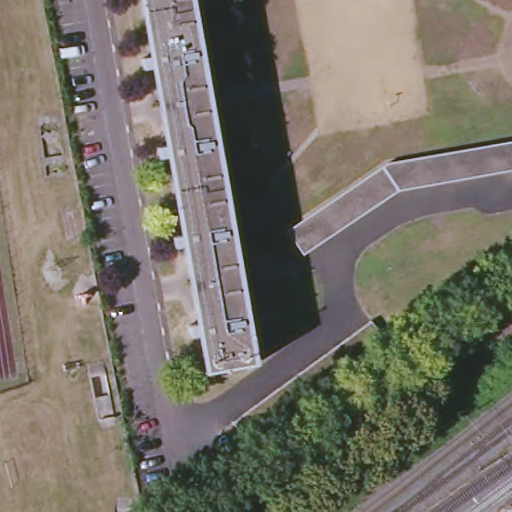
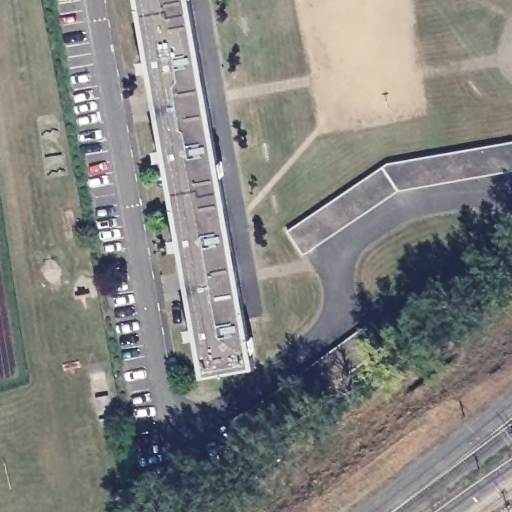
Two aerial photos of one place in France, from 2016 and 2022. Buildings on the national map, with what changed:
unchanged [(193,331),(191,321),(202,320),(187,240),(177,242),(175,232),(185,230),(172,151),(161,154),(160,143),(170,141),(156,62),(145,65),(144,54),(154,52),(145,0),(192,0),(255,359),(210,367),(203,330),(193,331)]
unchanged [(512,143),(512,172),(395,192),(300,256),(284,232),(384,165),(512,143)]
unchanged [(374,321),(392,345),(253,447),(235,424),(374,321)]

